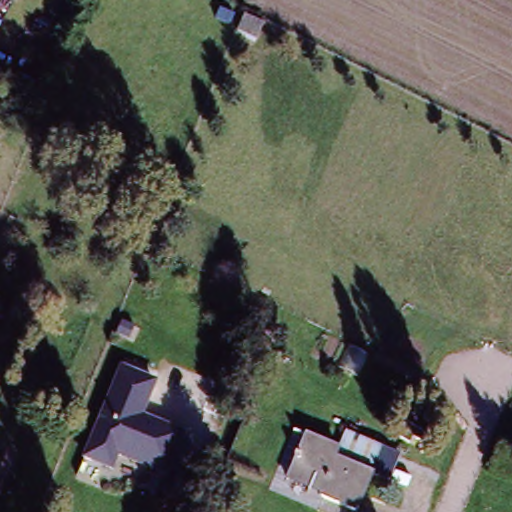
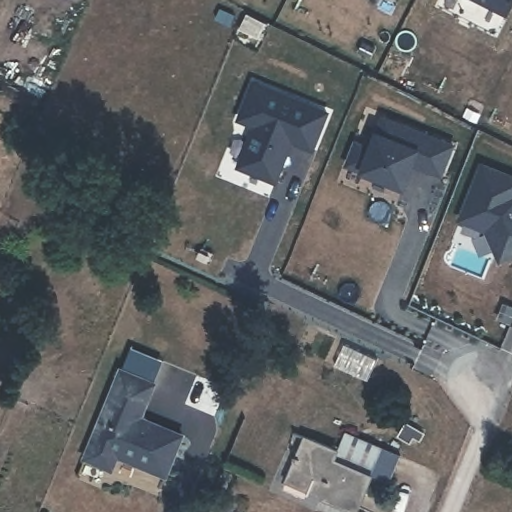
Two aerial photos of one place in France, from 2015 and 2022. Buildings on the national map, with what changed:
new [(478,0),(512,0),(512,3),(507,14),(478,0)]
unchanged [(217,26),(223,15),(232,20),(225,31),(217,26)]
unchanged [(230,39),(239,19),(257,25),(249,45),(230,39)]
new [(270,183),(234,167),(252,127),(235,121),(250,85),(323,116),(308,151),(288,142),(284,150),(270,183)]
new [(352,144),(367,151),(380,119),(449,148),(437,177),(408,166),(399,189),(343,166),(352,144)]
new [(479,167),(512,179),(512,257),(503,261),(497,258),(486,232),(459,222),(479,167)]
unchanged [(129,339),(118,334),(123,322),(134,327),(129,339)]
new [(344,349),(377,365),(367,385),(334,370),(344,349)]
unchanged [(141,422),(183,439),(166,480),(118,460),(112,473),(85,462),(121,373),(155,387),(141,422)]
unchanged [(428,427),(424,432),(419,428),(415,435),(404,428),(412,417),(428,427)]
unchanged [(369,472),(372,473),(357,510),(322,495),(322,493),(287,478),(306,435),(339,449),(347,432),(381,447),(369,472)]

